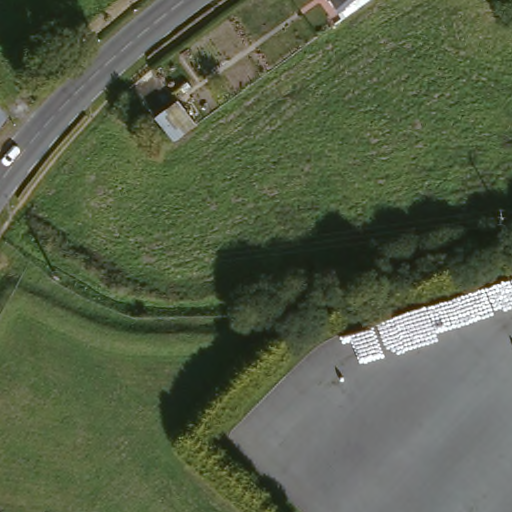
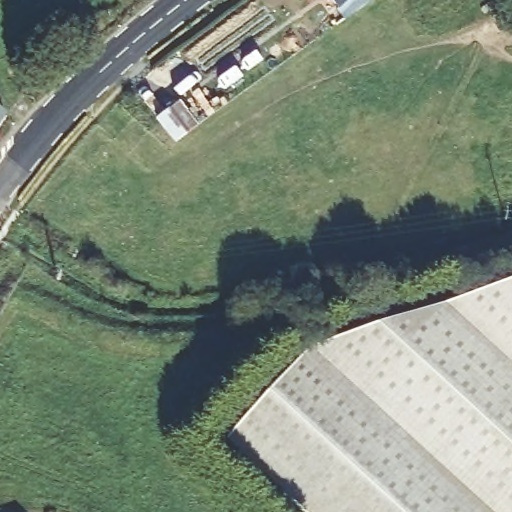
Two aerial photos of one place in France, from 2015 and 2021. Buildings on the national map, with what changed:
unchanged [(340,14),(331,0),(359,0),(340,14)]
unchanged [(182,101),(197,126),(176,140),(161,113),(182,101)]
unchanged [(12,116),(0,132),(0,107),(13,115),(12,116)]
new [(310,349),(512,283),(512,512),(302,512),(224,441),(310,349)]

